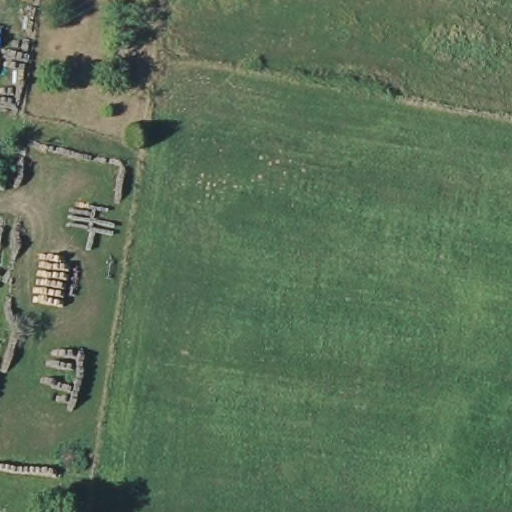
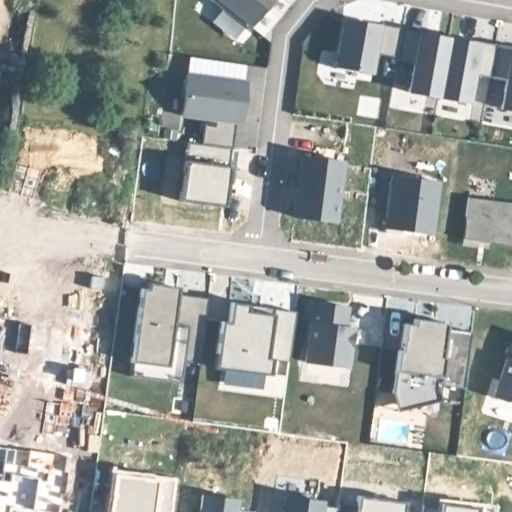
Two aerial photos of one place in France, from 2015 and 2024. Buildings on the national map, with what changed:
new [(211,0),(270,0),(246,30),(211,0)]
new [(512,110),(500,108),(505,80),(470,74),(467,102),(407,92),(415,59),(375,52),(373,72),(337,68),(342,20),(512,48),(512,110)]
new [(240,122),(234,121),(224,207),(179,200),(186,140),(202,144),(204,118),(182,116),(185,75),(244,82),(240,122)]
new [(340,160),(335,221),(293,216),(300,156),(340,160)]
new [(390,175),(442,183),(435,235),(383,227),(390,175)]
new [(512,246),(462,238),(467,196),(512,203),(512,246)]
new [(199,363),(166,360),(166,367),(130,363),(138,290),(205,298),(199,363)]
new [(346,305),(345,327),(351,329),(347,367),(305,362),(312,302),(346,305)]
new [(247,305),(245,312),(293,318),(288,362),(270,359),(269,374),(221,370),(222,353),(215,353),(219,322),(227,322),(229,303),(247,305)]
new [(445,322),(442,329),(470,333),(464,386),(440,384),(440,390),(422,388),(420,397),(390,392),(395,350),(397,350),(401,324),(412,325),(413,317),(445,322)]
new [(508,359),(511,359),(512,356),(512,403),(495,396),(508,359)]
new [(109,468),(176,477),(171,512),(102,512),(109,468)]
new [(202,493),(241,500),(239,510),(255,511),(254,512),(199,512),(202,493)]
new [(418,512),(355,512),(357,495),(404,502),(402,508),(419,511),(418,512)]
new [(284,496),(337,505),(335,512),(281,512),(284,496)]

